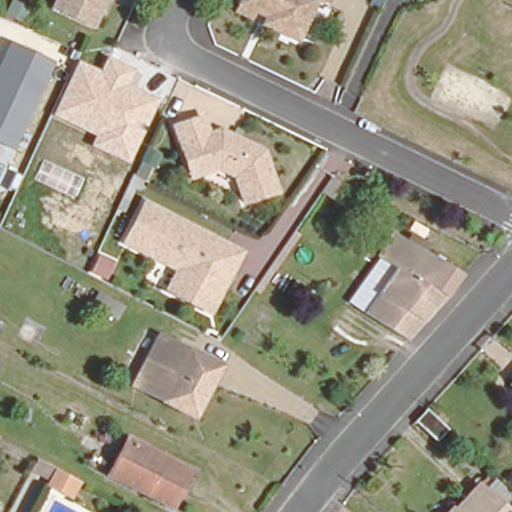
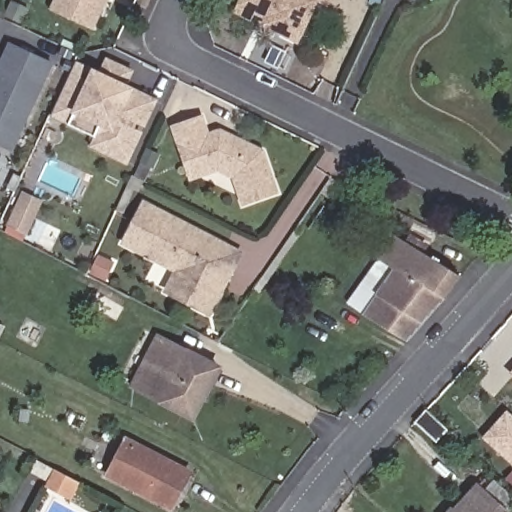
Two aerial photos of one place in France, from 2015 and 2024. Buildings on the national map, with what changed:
unchanged [(48,14),(55,0),(104,0),(87,33),(48,14)]
unchanged [(249,10),(245,17),(230,10),(234,3),(235,0),(311,0),(291,40),(269,29),(268,28),(257,23),(261,16),(249,10)]
unchanged [(315,0),(324,0),(322,4),(315,0)]
unchanged [(0,144),(0,59),(8,42),(55,63),(15,151),(0,144)]
unchanged [(51,116),(77,60),(100,71),(106,57),(134,70),(127,85),(159,100),(128,164),(90,146),(95,136),(51,116)]
unchanged [(225,172),(209,165),(180,171),(165,121),(195,113),(200,125),(255,144),(270,189),(234,200),(225,172)]
unchanged [(220,291),(208,313),(168,292),(180,270),(125,241),(145,203),(225,246),(240,253),(220,291)]
unchanged [(361,319),(393,275),(376,264),(373,261),(389,240),(457,282),(401,346),(361,319)]
unchanged [(331,301),(342,284),(357,293),(376,264),(393,275),(361,319),(331,301)]
unchanged [(125,306),(117,321),(90,306),(99,292),(125,306)]
unchanged [(220,367),(194,418),(131,387),(159,336),(220,367)]
unchanged [(428,409),(450,429),(437,442),(416,423),(428,409)]
new [(481,438),(507,409),(512,414),(512,466),(481,438)]
unchanged [(190,473),(171,506),(110,474),(127,440),(190,473)]
unchanged [(71,476),(80,481),(70,500),(45,488),(56,468),(71,476)]
unchanged [(475,485),(505,512),(448,512),(475,485)]
unchanged [(511,512),(512,510),(512,512),(511,512)]

